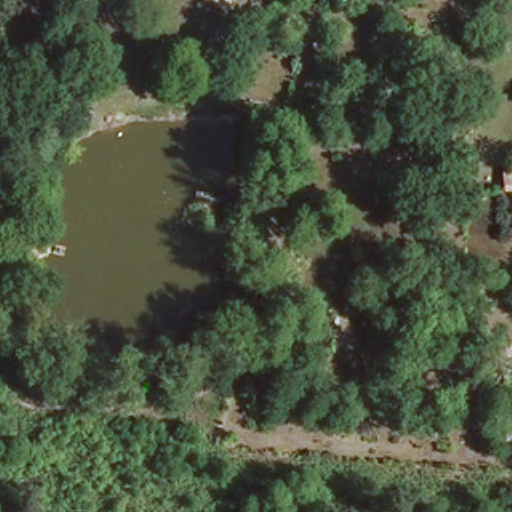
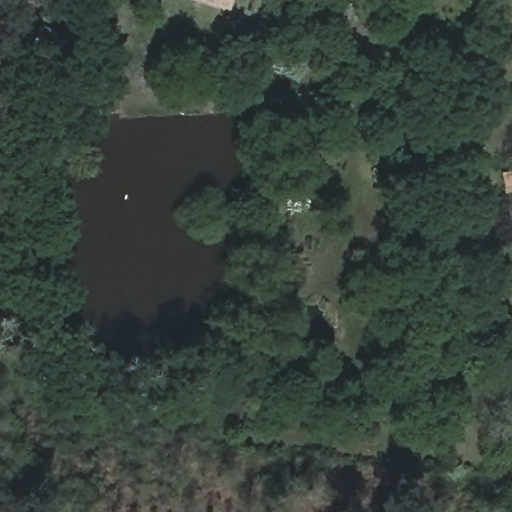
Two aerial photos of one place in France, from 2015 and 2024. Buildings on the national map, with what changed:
unchanged [(218,0),(210,11),(193,0),(218,0)]
unchanged [(497,169),(512,168),(512,190),(500,191),(497,169)]

